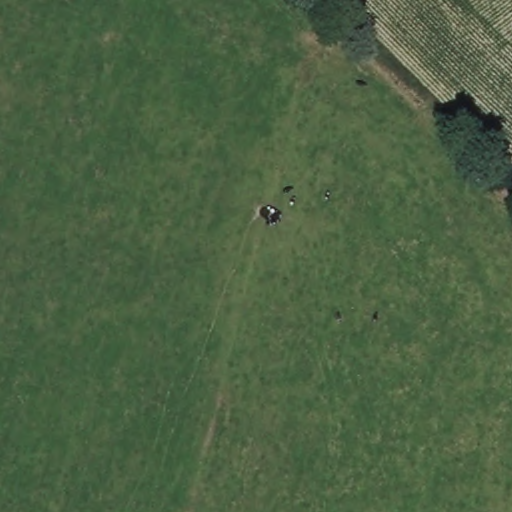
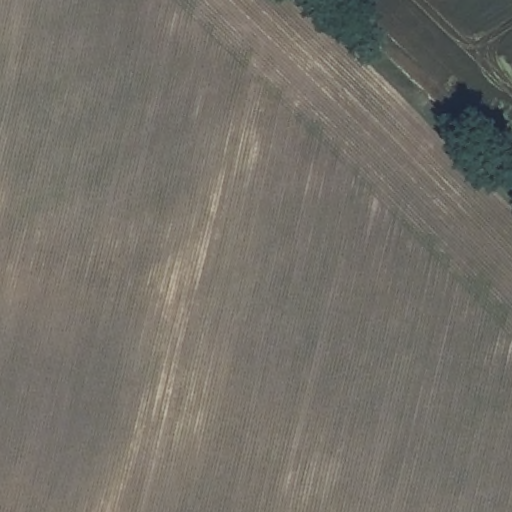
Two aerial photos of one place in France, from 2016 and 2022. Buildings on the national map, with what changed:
[]

